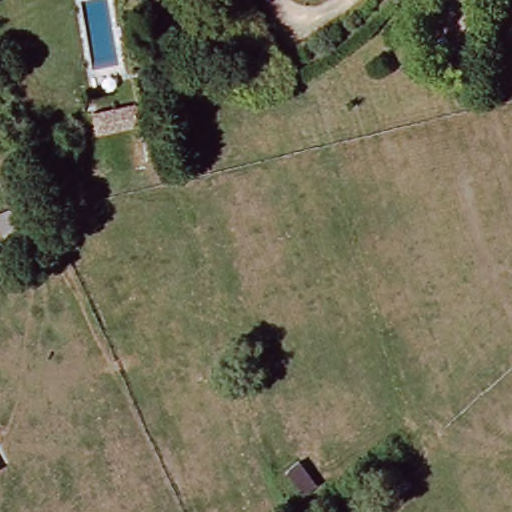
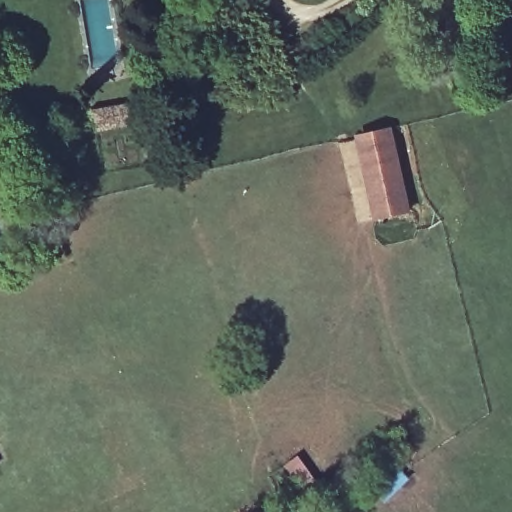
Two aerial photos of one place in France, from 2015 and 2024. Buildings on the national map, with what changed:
unchanged [(104,137),(100,117),(144,106),(149,128),(104,137)]
new [(355,137),(392,127),(410,211),(373,221),(355,137)]
unchanged [(24,223),(35,212),(55,235),(42,248),(24,223)]
unchanged [(280,467),(297,455),(315,481),(297,492),(280,467)]

